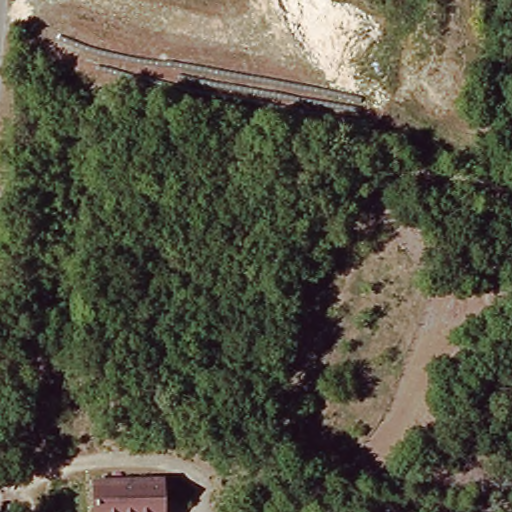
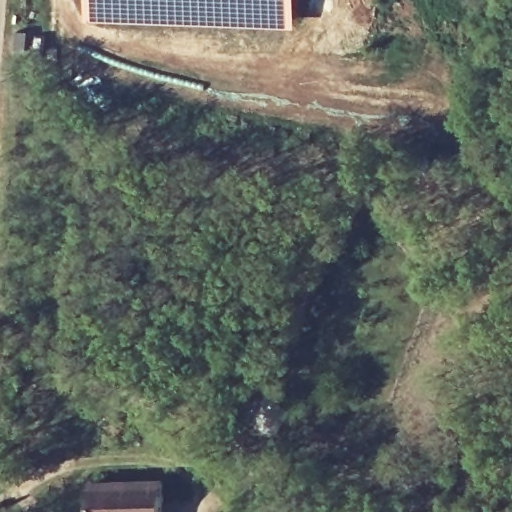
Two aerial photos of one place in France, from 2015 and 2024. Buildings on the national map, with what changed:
new [(297,0),(297,27),(86,21),(87,0),(297,0)]
unchanged [(99,481),(167,482),(166,512),(98,512),(99,481)]

